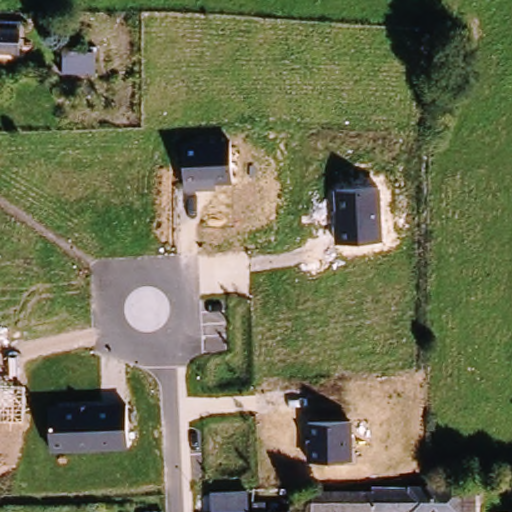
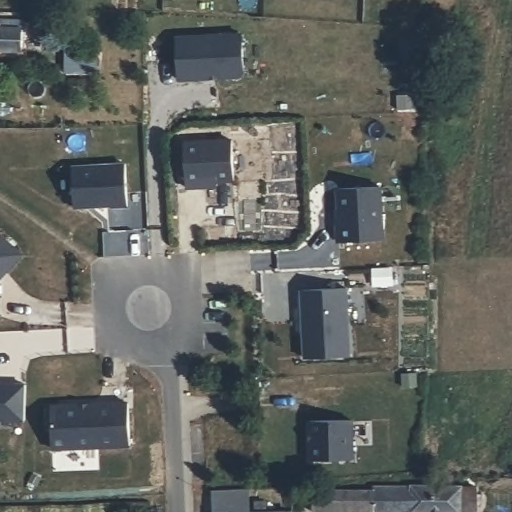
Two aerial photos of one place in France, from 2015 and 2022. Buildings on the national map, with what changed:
new [(241,32),(244,76),(177,80),(175,35),(241,32)]
unchanged [(16,55),(0,55),(0,33),(15,33),(16,55)]
unchanged [(95,71),(64,70),(65,50),(95,50),(95,71)]
unchanged [(233,180),(217,181),(216,186),(187,187),(183,144),(230,140),(233,180)]
new [(125,162),(128,204),(75,206),(70,164),(125,162)]
unchanged [(380,190),(382,237),(337,239),(335,190),(380,190)]
new [(346,285),(350,356),(303,358),(300,289),(346,285)]
unchanged [(25,417),(0,417),(0,383),(24,382),(25,417)]
unchanged [(126,400),(128,446),(52,450),(51,402),(126,400)]
unchanged [(351,420),(353,459),(310,458),(310,420),(351,420)]
unchanged [(308,512),(308,490),(368,490),(368,486),(471,487),(471,512),(308,512)]
unchanged [(216,512),(216,502),(250,500),(250,512),(216,512)]
unchanged [(268,501),(269,512),(258,512),(257,501),(268,501)]
unchanged [(293,512),(269,512),(293,511),(293,512)]

